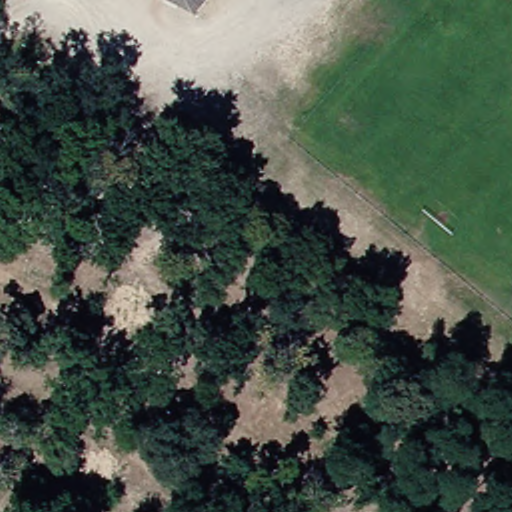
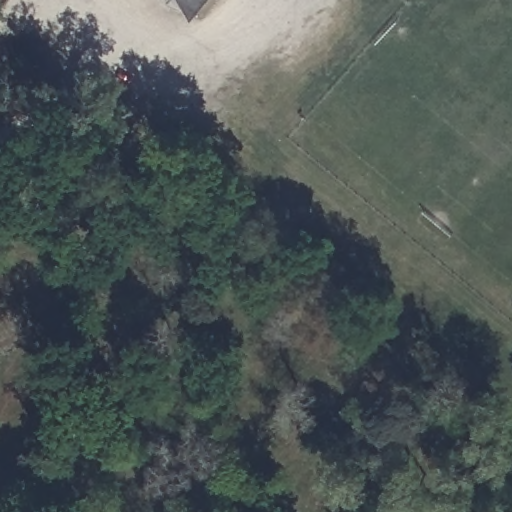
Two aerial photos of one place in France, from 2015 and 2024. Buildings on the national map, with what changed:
unchanged [(198,0),(189,11),(176,0),(198,0)]

